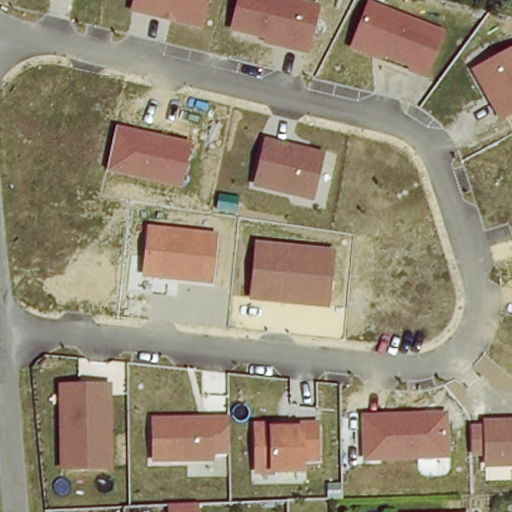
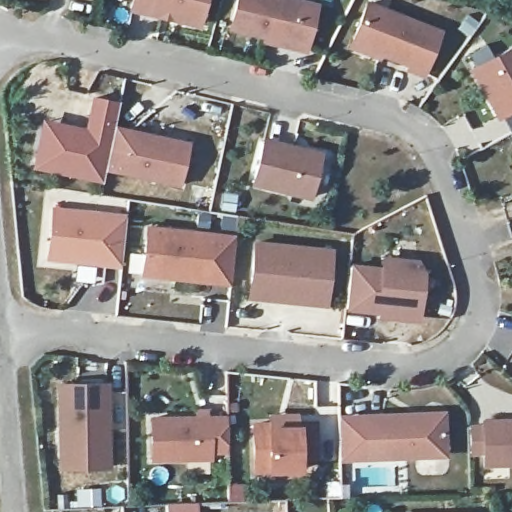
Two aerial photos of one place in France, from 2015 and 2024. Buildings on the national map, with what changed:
unchanged [(201,29),(130,11),(133,0),(208,0),(201,29)]
unchanged [(320,4),(309,53),(263,44),(265,39),(229,31),(237,0),(302,0),(320,4)]
unchanged [(445,30),(426,78),(408,71),(409,66),(383,57),(381,61),(349,49),(368,1),(445,30)]
unchanged [(498,121),(471,70),(512,48),(512,113),(498,121)]
new [(106,172),(103,171),(101,184),(32,170),(42,120),(85,128),(92,97),(119,102),(114,126),(117,126),(106,172)]
unchanged [(191,141),(180,188),(106,172),(117,126),(191,141)]
unchanged [(324,153),(312,201),(252,187),(265,139),(324,153)]
new [(58,210),(130,217),(125,266),(53,258),(58,210)]
unchanged [(216,233),(212,284),(143,277),(147,226),(216,233)]
unchanged [(334,249),(328,308),(249,300),(255,241),(334,249)]
new [(352,266),(384,270),(386,259),(419,262),(425,274),(421,315),(348,308),(352,266)]
unchanged [(113,470),(60,470),(57,383),(111,384),(113,470)]
unchanged [(449,458),(362,461),(360,415),(447,412),(449,458)]
unchanged [(228,416),(229,455),(213,455),(213,462),(152,462),(151,417),(228,416)]
unchanged [(483,419),(512,418),(512,467),(485,468),(485,456),(471,456),(470,425),(483,425),(483,419)]
unchanged [(318,462),(303,462),(303,475),(254,475),(252,422),(317,421),(318,462)]

